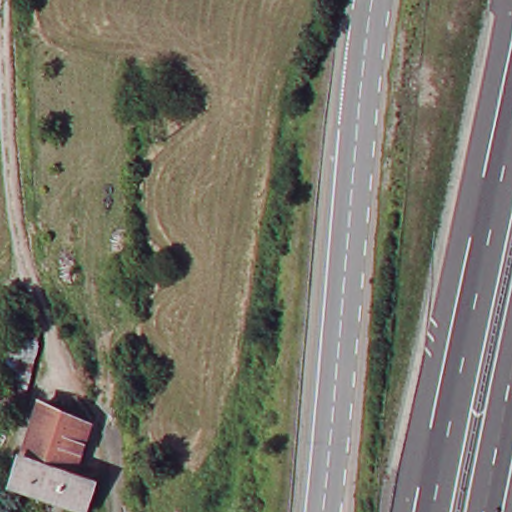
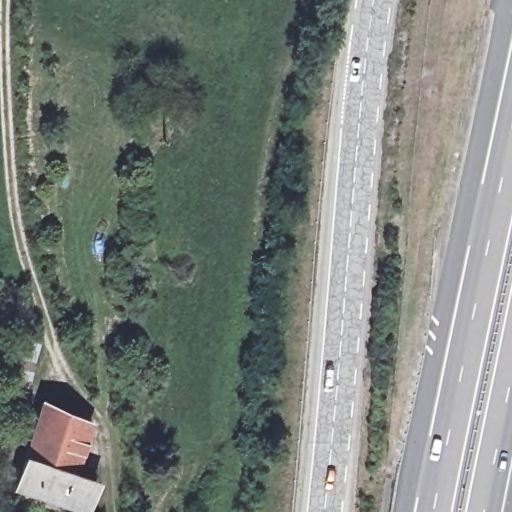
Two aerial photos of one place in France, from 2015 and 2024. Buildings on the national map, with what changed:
unchanged [(69,477),(91,485),(80,512),(74,512),(10,488),(42,405),(87,424),(87,426),(69,477)]

